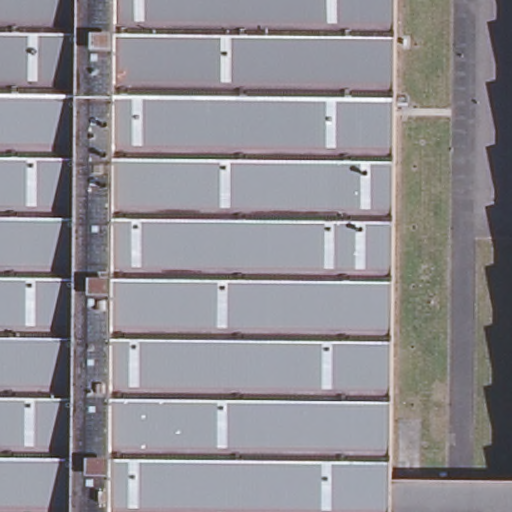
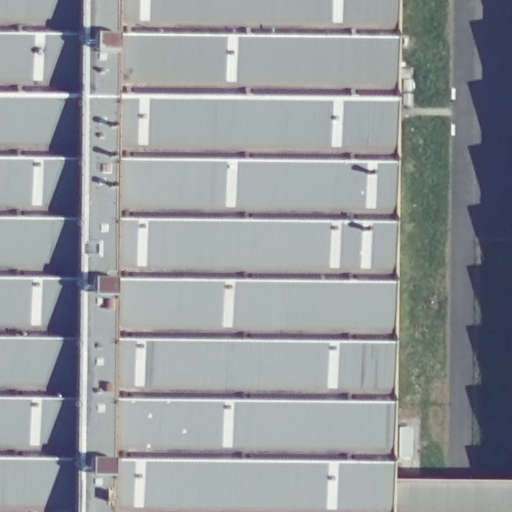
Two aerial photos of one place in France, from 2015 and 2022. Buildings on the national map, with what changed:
unchanged [(393,512),(0,512),(0,0),(399,0),(393,477),(393,512)]
unchanged [(512,479),(512,512),(393,512),(393,477),(512,479)]

